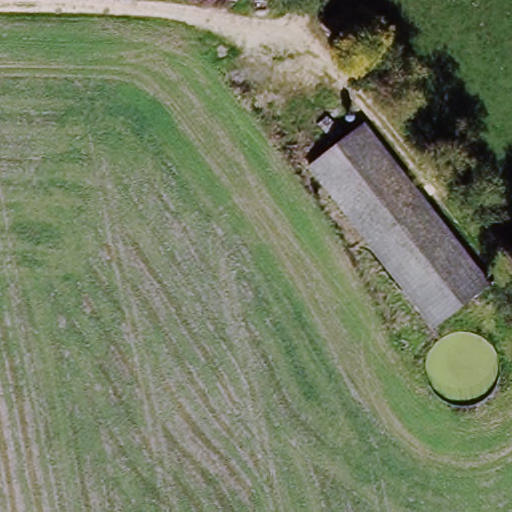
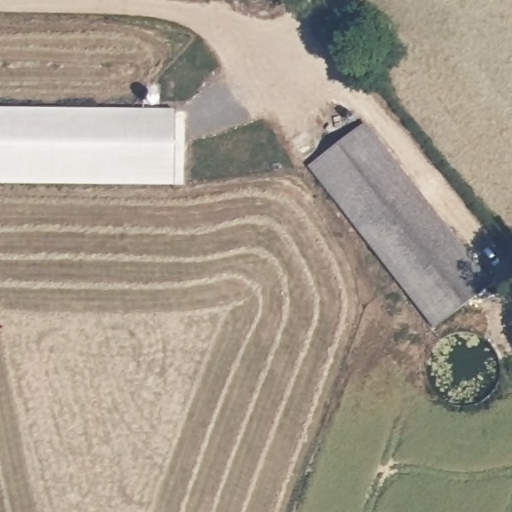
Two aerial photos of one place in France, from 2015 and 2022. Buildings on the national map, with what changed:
new [(175,111),(175,188),(0,187),(0,110),(175,111)]
unchanged [(475,297),(435,329),(308,168),(362,126),(488,286),(475,297)]

